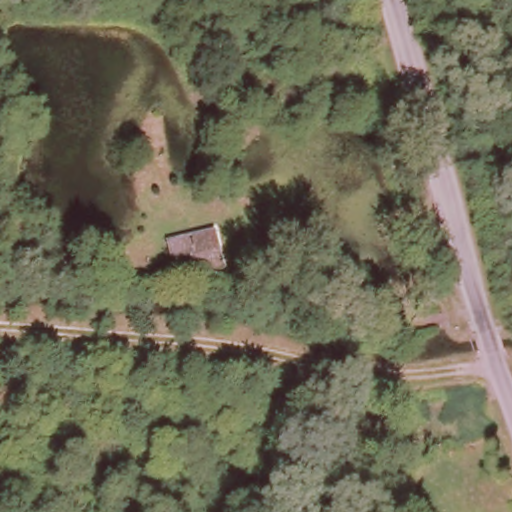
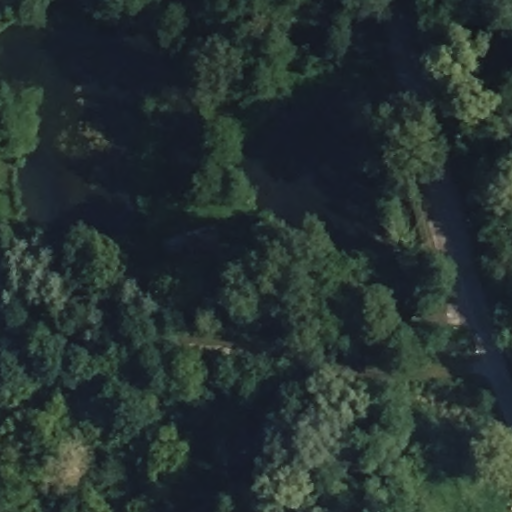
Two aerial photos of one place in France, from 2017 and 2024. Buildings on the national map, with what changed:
unchanged [(214,229),(225,271),(175,283),(164,241),(214,229)]

